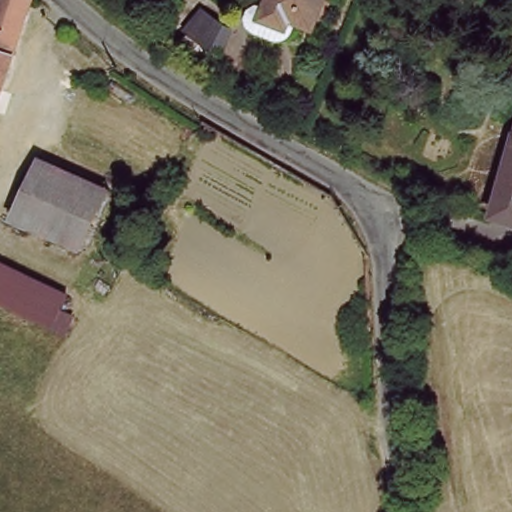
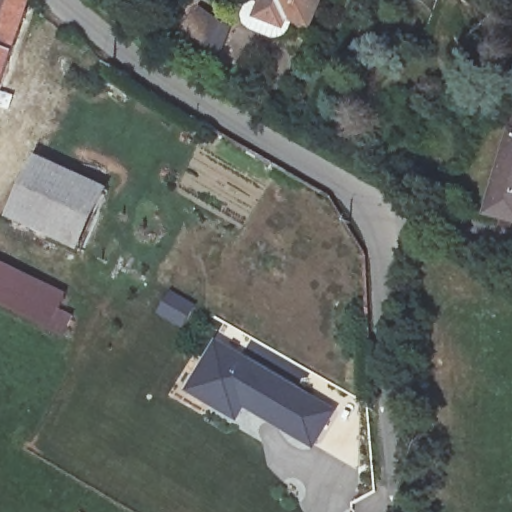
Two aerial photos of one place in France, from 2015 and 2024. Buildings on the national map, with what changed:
unchanged [(0,101),(0,0),(34,0),(18,52),(0,101)]
unchanged [(296,24),(293,33),(286,37),(279,38),(264,35),(249,23),(246,16),(246,7),(254,1),(261,2),(262,0),(328,0),(317,31),(296,24)]
unchanged [(201,6),(237,30),(224,59),(182,29),(201,6)]
unchanged [(505,167),(512,137),(512,216),(492,210),(505,167)]
unchanged [(106,183),(84,241),(83,245),(13,217),(16,208),(35,156),(106,183)]
unchanged [(70,290),(63,310),(77,314),(68,335),(0,298),(0,257),(70,290)]
new [(341,411),(317,450),(248,409),(240,422),(188,393),(219,339),(341,411)]

